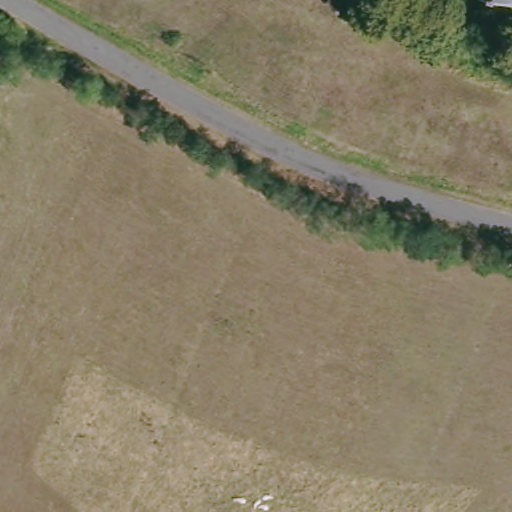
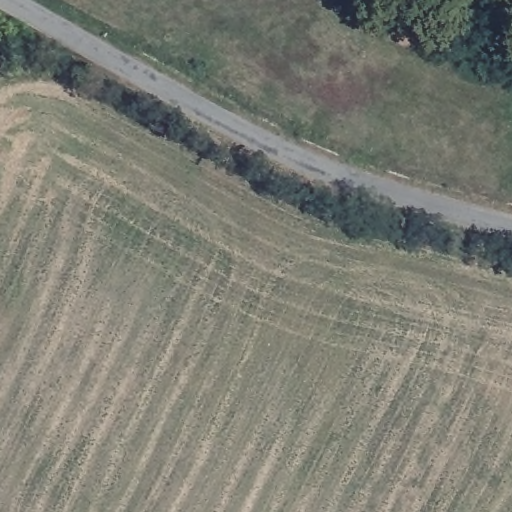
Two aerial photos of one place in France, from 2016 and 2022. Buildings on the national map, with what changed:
[]

